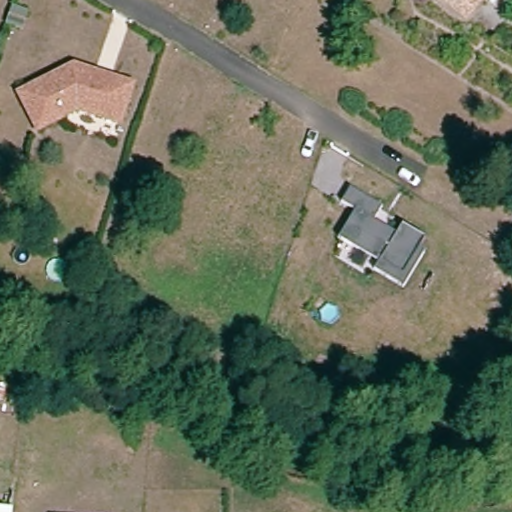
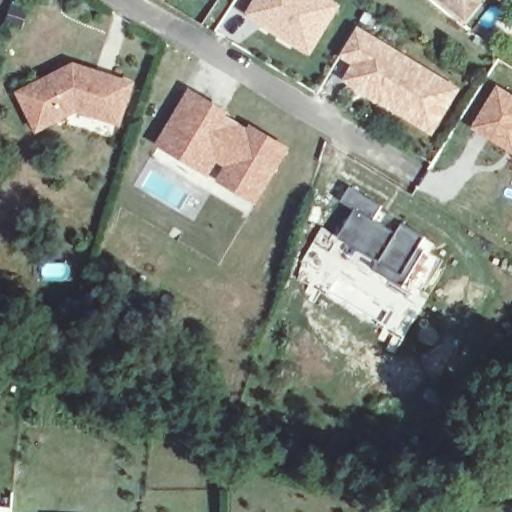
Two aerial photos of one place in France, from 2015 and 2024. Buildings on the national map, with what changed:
new [(310,56),(244,16),(254,0),(333,0),(341,5),(310,56)]
unchanged [(445,0),(483,0),(468,19),(445,0)]
unchanged [(15,7),(30,12),(24,30),(10,25),(15,7)]
new [(461,89),(433,136),(341,82),(351,65),(339,59),(358,27),(461,89)]
unchanged [(75,111),(34,130),(16,92),(72,66),(93,74),(107,79),(130,86),(116,125),(75,111)]
new [(512,154),(471,130),(497,86),(512,94),(512,154)]
new [(230,113),(228,117),(247,129),(250,124),(291,149),(257,205),(215,182),(224,167),(219,164),(210,178),(156,145),(190,89),(230,113)]
unchanged [(351,187),(381,206),(372,217),(397,233),(402,224),(427,237),(421,245),(427,250),(406,286),(377,270),(381,260),(341,237),(358,210),(343,198),(351,187)]

